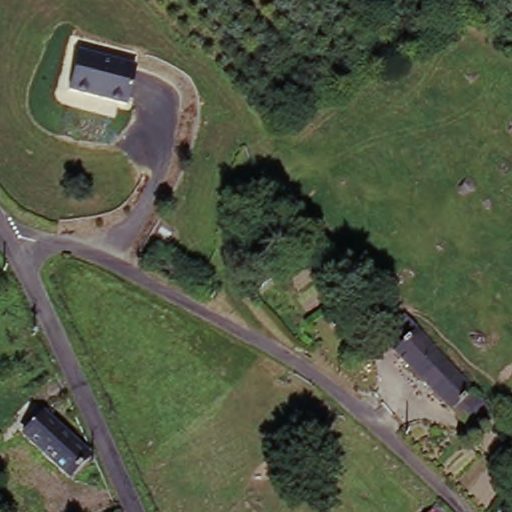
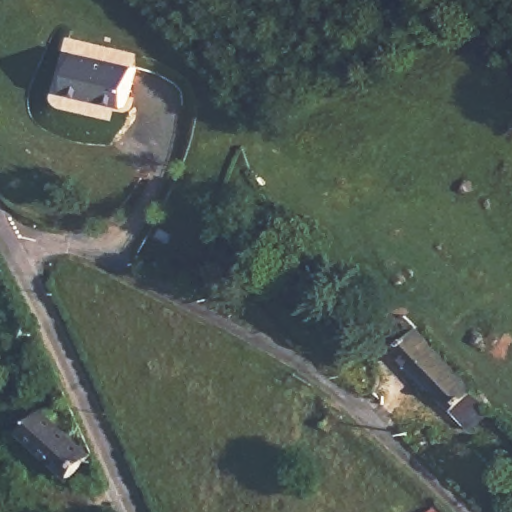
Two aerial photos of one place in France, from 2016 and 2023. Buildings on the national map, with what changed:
unchanged [(132,69),(122,107),(64,96),(74,56),(132,69)]
unchanged [(351,292),(362,307),(353,312),(344,297),(351,292)]
unchanged [(474,441),(464,431),(377,341),(387,332),(391,336),(408,323),(416,335),(420,338),(416,342),(484,411),(494,422),(474,441)]
unchanged [(39,412),(21,434),(11,425),(30,406),(39,412)]
unchanged [(41,417),(85,457),(65,481),(21,440),(24,436),(41,417)]
unchanged [(433,512),(435,511),(436,512),(433,512)]

